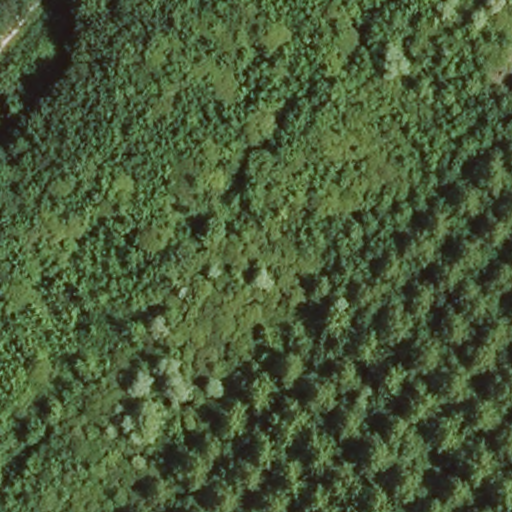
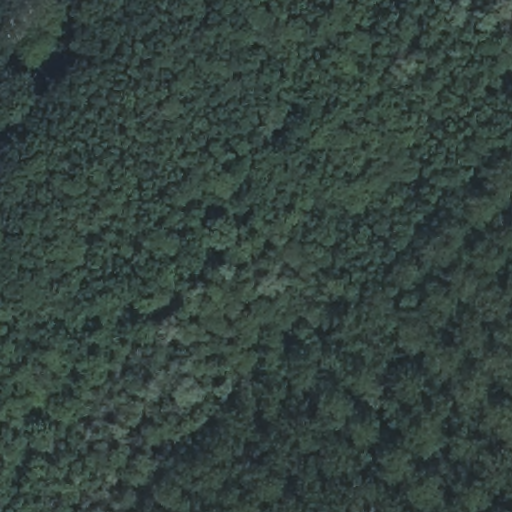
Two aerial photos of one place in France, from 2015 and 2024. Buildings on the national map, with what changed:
[]

